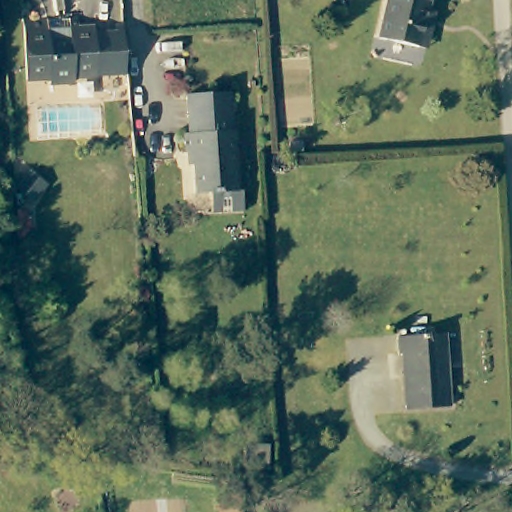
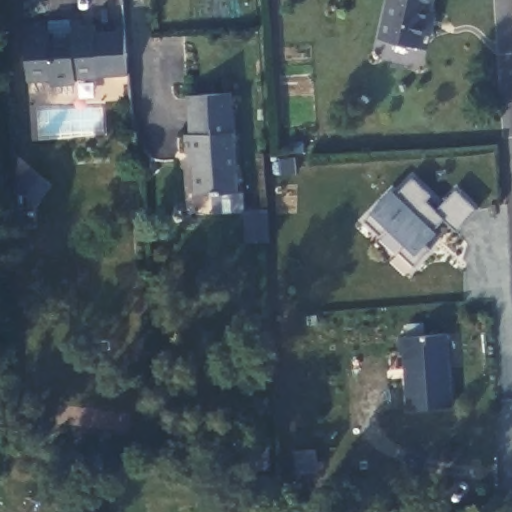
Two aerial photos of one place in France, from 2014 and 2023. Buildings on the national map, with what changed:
unchanged [(423,44),(415,43),(375,34),(383,0),(425,0),(423,8),(431,11),(423,44)]
unchanged [(135,71),(81,74),(81,81),(59,82),(57,75),(35,76),(30,19),(52,18),(55,33),(77,32),(76,16),(87,16),(89,24),(132,22),(135,71)]
unchanged [(249,204),(219,205),(217,185),(201,186),(198,143),(190,143),(189,126),(197,126),(195,86),(235,84),(241,184),(247,184),(249,204)]
new [(457,229),(443,217),(433,228),(437,231),(426,243),(429,249),(415,265),(400,252),(405,245),(385,228),(379,234),(365,219),(370,211),(392,189),(397,193),(410,177),(430,196),(425,200),(437,210),(455,191),(475,209),(457,229)]
unchanged [(455,404),(413,407),(411,352),(406,352),(405,335),(453,332),(455,404)]
unchanged [(236,483),(242,512),(221,512),(215,486),(236,483)]

